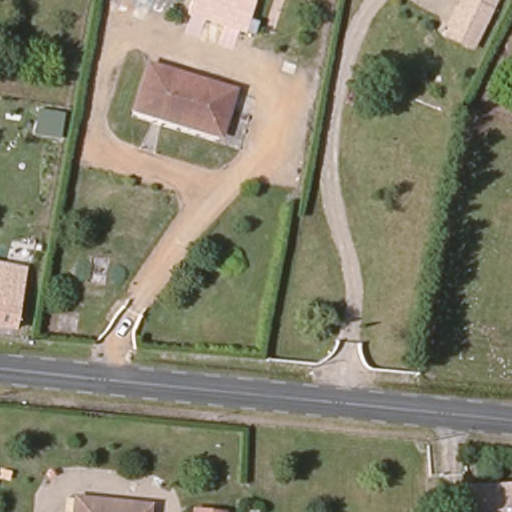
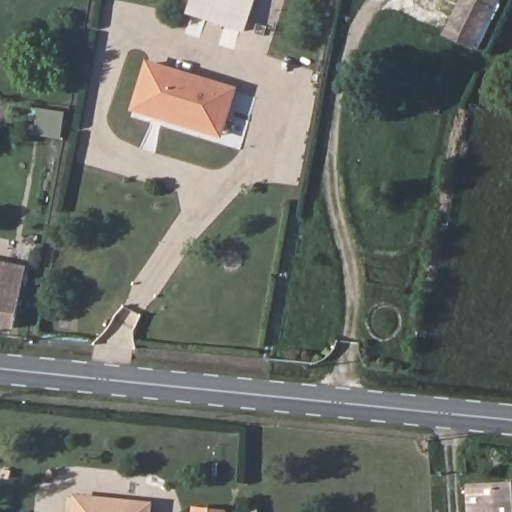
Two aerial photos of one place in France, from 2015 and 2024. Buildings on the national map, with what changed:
unchanged [(202,18),(207,0),(251,0),(243,29),(202,18)]
unchanged [(460,0),(495,0),(492,5),(472,45),(445,30),(460,0)]
unchanged [(162,114),(161,119),(132,110),(147,65),(233,91),(222,131),(162,114)]
unchanged [(0,324),(0,262),(24,266),(16,326),(0,324)]
unchanged [(470,490),(512,487),(512,512),(471,512),(470,490)]
unchanged [(150,512),(73,512),(74,499),(151,507),(150,512)]
unchanged [(191,510),(222,512),(190,512),(191,510)]

